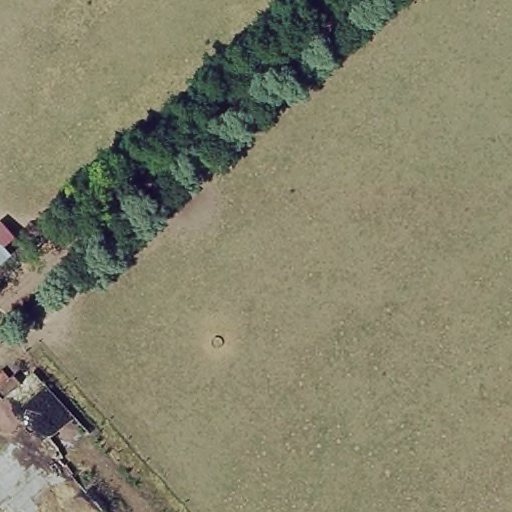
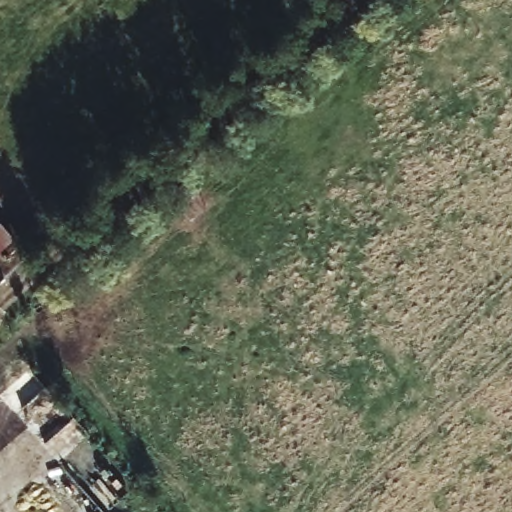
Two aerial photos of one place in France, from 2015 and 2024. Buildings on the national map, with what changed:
unchanged [(0,254),(0,231),(11,245),(0,254)]

